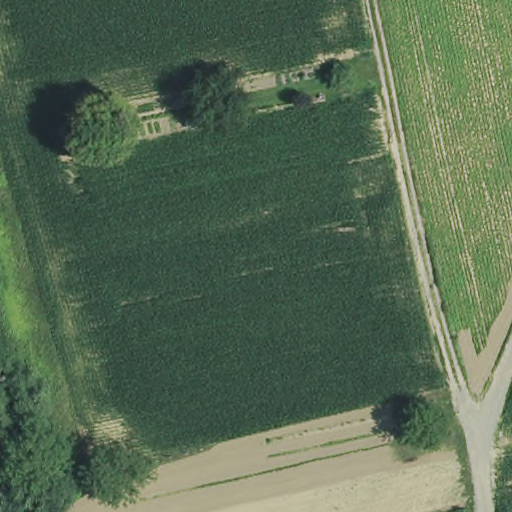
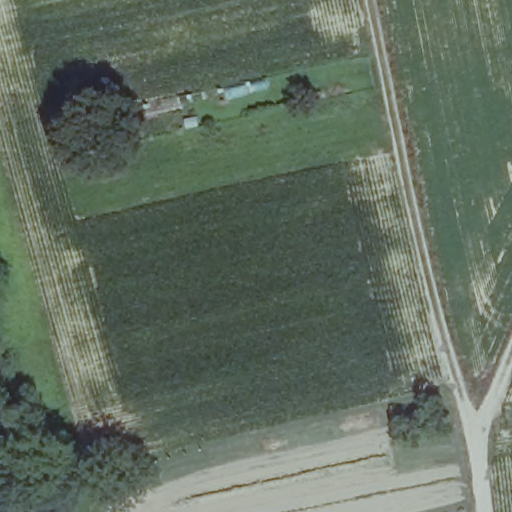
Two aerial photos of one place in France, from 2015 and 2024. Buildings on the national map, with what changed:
unchanged [(80,143),(69,146),(64,125),(75,123),(80,143)]

